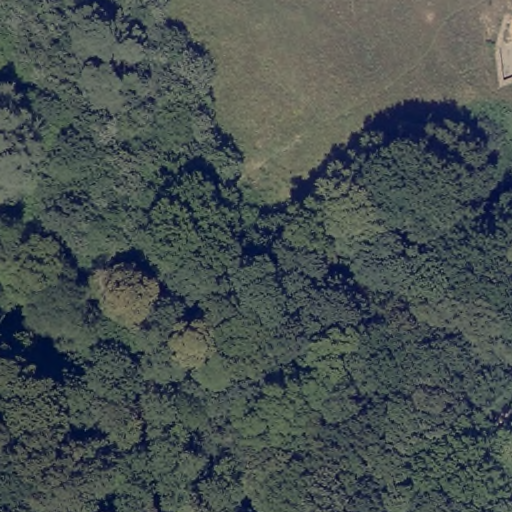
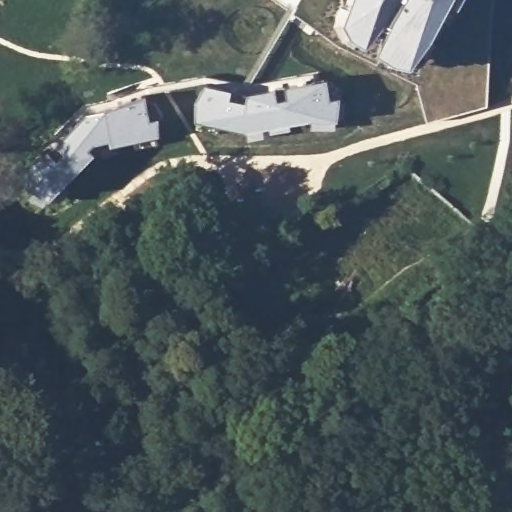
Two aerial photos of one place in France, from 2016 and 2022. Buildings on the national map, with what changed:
new [(349,5),(351,0),(450,0),(430,37),(413,57),(396,56),(378,46),(388,25),(381,23),(367,39),(354,33),(350,26),(345,33),(334,20),(341,0),(343,0),(349,5)]
new [(247,91),(274,87),(327,78),(330,96),(342,96),(337,120),(311,120),(243,132),(195,118),(196,99),(204,83),(247,91)]
new [(29,186),(10,175),(48,149),(86,111),(104,107),(145,94),(150,119),(160,116),(161,134),(113,143),(111,139),(97,142),(92,147),(95,152),(50,197),(46,196),(44,207),(28,198),(29,186)]

